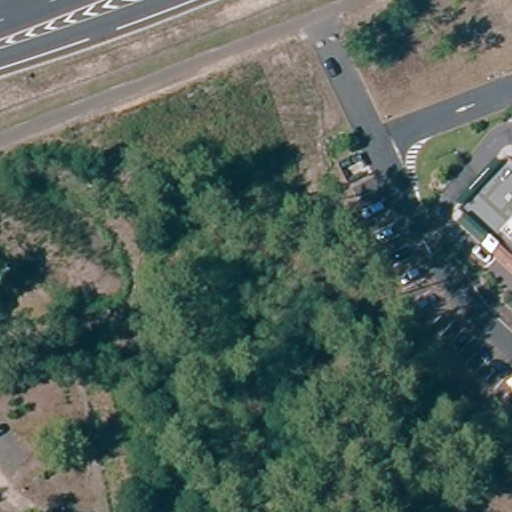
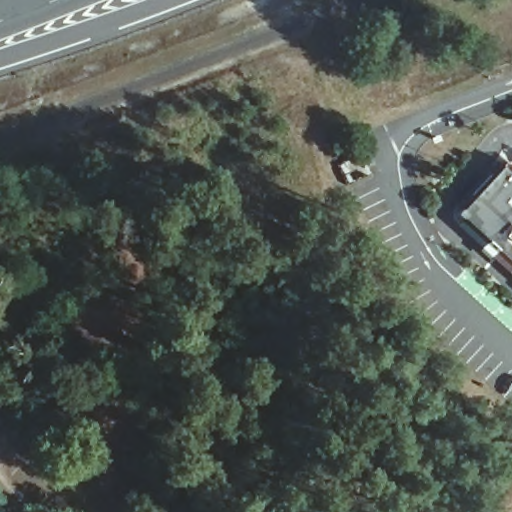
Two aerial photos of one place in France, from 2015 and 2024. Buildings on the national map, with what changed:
unchanged [(506,162),(512,167),(512,264),(457,214),(506,162)]

